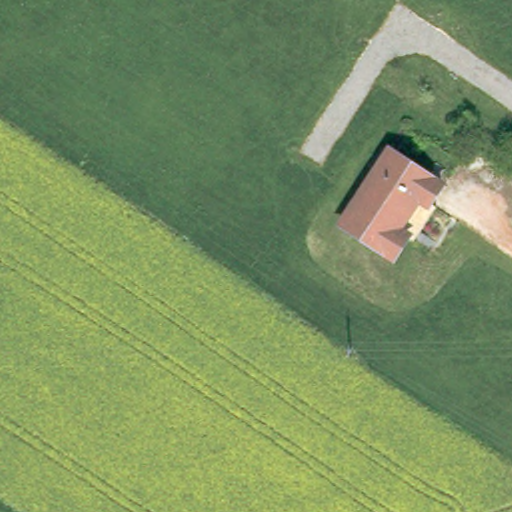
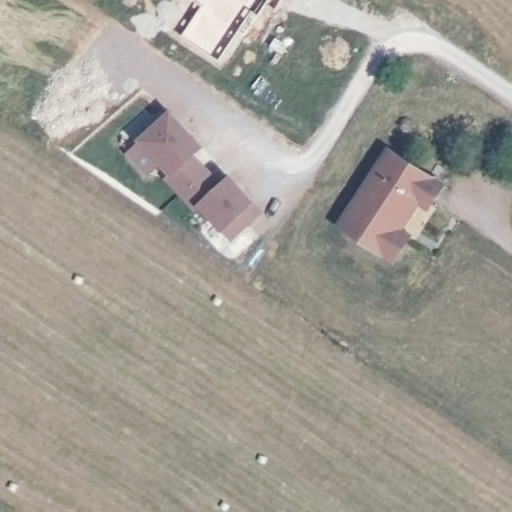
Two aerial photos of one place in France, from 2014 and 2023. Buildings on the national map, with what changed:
new [(224,181),(231,174),(256,202),(264,212),(232,242),(222,232),(200,206),(195,211),(168,180),(172,176),(139,140),(172,110),(205,148),(198,155),(224,181)]
unchanged [(434,203),(440,208),(419,242),(411,237),(397,260),(345,226),(381,169),(374,164),(383,150),(391,154),(393,152),(445,185),(434,203)]

